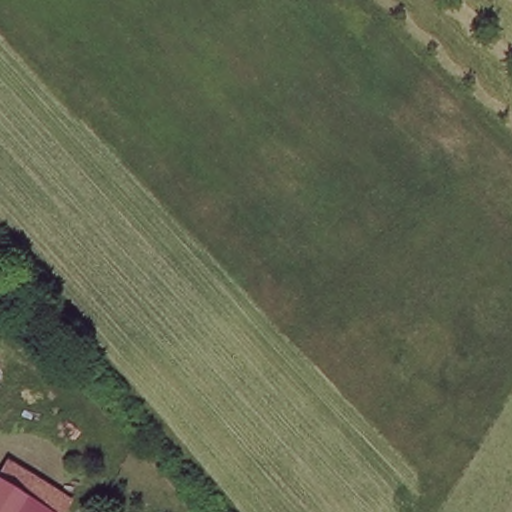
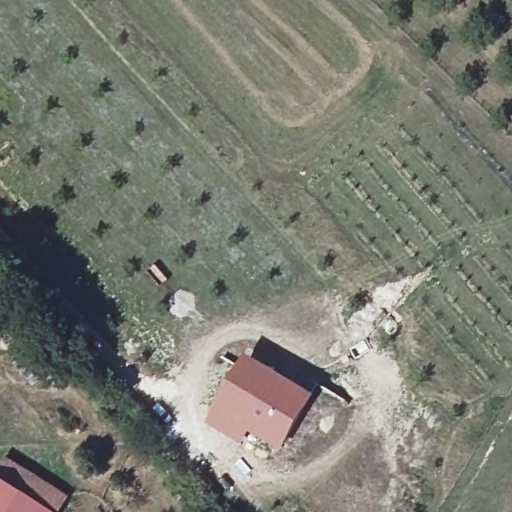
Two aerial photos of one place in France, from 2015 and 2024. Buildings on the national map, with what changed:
new [(250,357),(317,397),(282,454),(249,435),(241,446),(208,426),(250,357)]
unchanged [(0,486),(0,469),(4,463),(67,501),(60,512),(11,512),(20,497),(0,486)]
unchanged [(11,512),(0,512),(0,486),(20,497),(11,512)]

